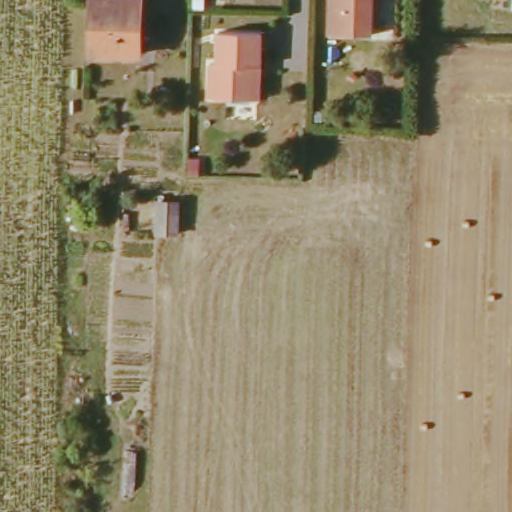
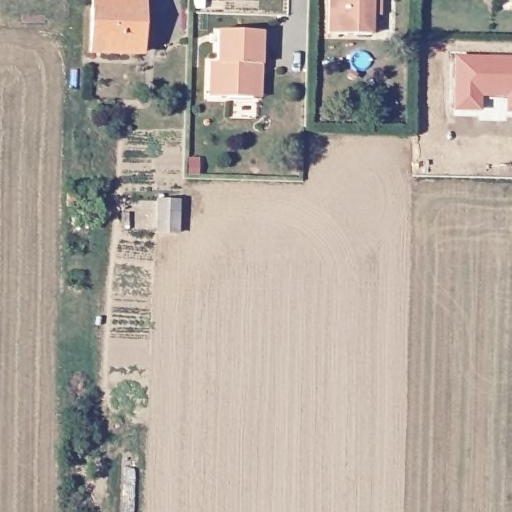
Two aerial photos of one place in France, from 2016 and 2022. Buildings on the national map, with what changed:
unchanged [(382,0),(382,31),(335,30),(336,0),(382,0)]
unchanged [(100,2),(143,3),(143,34),(135,34),(135,54),(99,52),(100,2)]
unchanged [(268,34),(269,64),(262,65),(262,100),(216,99),(217,69),(225,69),(225,34),(268,34)]
new [(512,59),(512,112),(507,112),(507,96),(479,96),(479,111),(455,110),(455,58),(512,59)]
unchanged [(173,198),(173,231),(159,231),(152,230),(152,197),(160,197),(173,198)]

